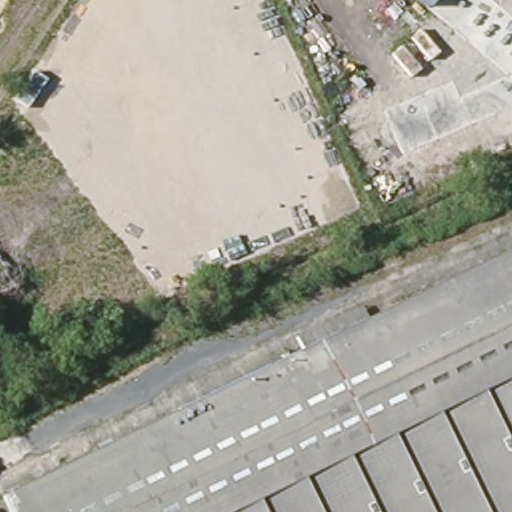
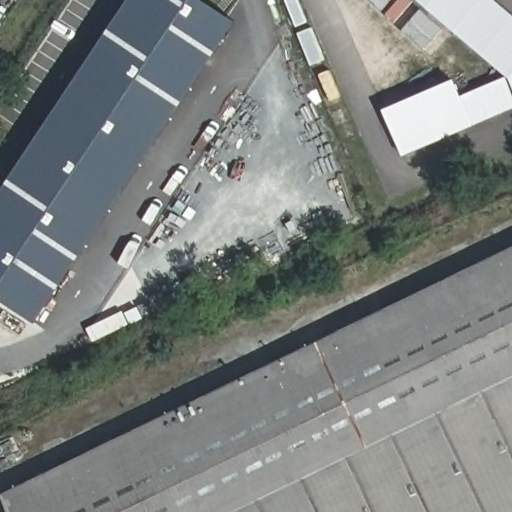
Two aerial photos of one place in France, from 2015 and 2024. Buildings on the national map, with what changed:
new [(36,323),(0,300),(0,191),(126,0),(203,0),(236,22),(36,323)]
unchanged [(422,0),(436,0),(431,7),(422,0)]
new [(512,83),(509,76),(430,11),(431,7),(436,0),(494,0),(512,15),(512,83)]
new [(512,109),(473,125),(402,156),(383,110),(454,79),(461,96),(509,76),(512,83),(512,109)]
unchanged [(365,320),(512,248),(512,512),(6,512),(5,510),(0,500),(0,497),(83,456),(301,351),(365,320)]

